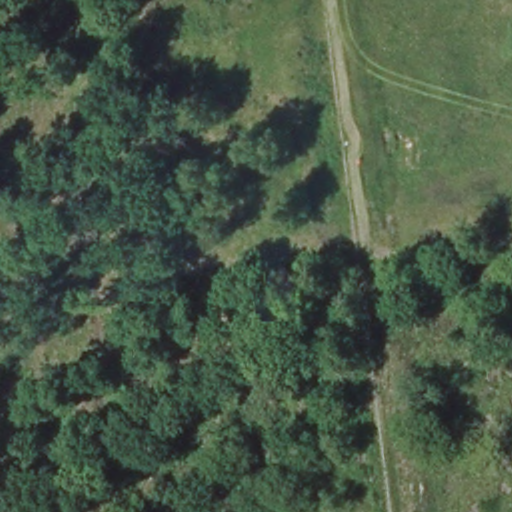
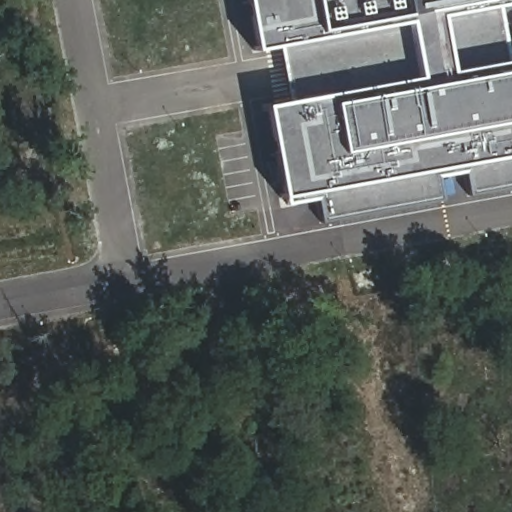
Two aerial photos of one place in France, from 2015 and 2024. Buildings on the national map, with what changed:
new [(282,199),(265,105),(288,101),(416,77),(407,24),(278,46),(255,50),(246,0),(512,0),(512,3),(498,5),(439,17),(450,72),(508,62),(512,61),(512,157),(285,198),(282,199)]
new [(508,62),(450,72),(439,17),(498,5),(508,62)]
new [(407,24),(416,77),(288,101),(278,46),(407,24)]
new [(512,187),(470,195),(465,171),(439,176),(442,200),(321,222),(318,200),(286,205),(285,198),(512,157),(512,187)]

